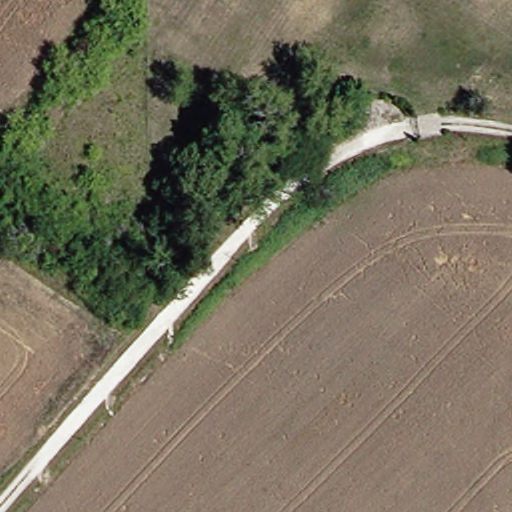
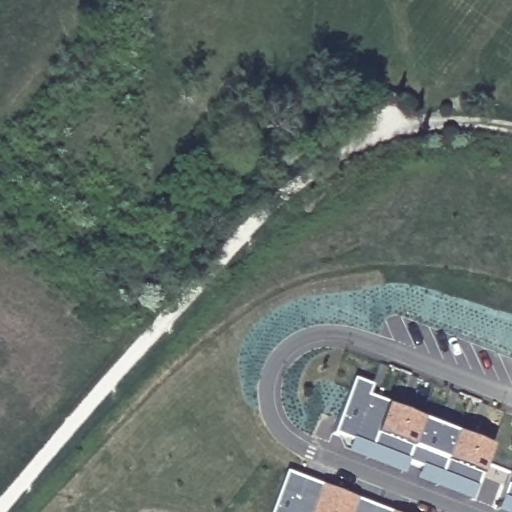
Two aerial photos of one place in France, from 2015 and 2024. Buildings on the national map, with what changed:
new [(410,460),(406,470),(346,446),(340,432),(336,431),(357,376),(375,382),(371,392),(391,401),(390,402),(495,444),(478,487),(474,497),(420,476),(425,465),(410,460)]
new [(399,512),(272,512),(290,468),(399,512)]
new [(505,497),(512,478),(512,511),(500,507),(505,497)]

